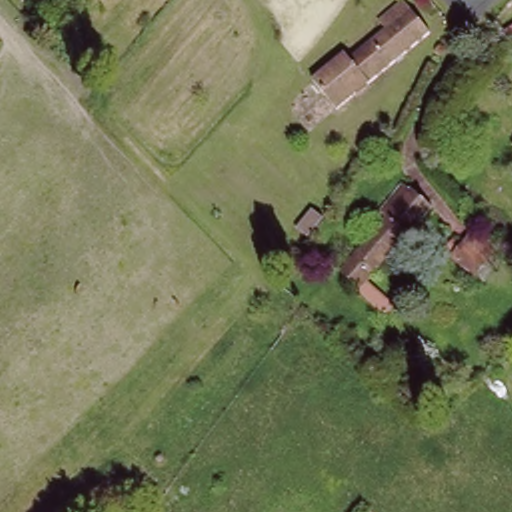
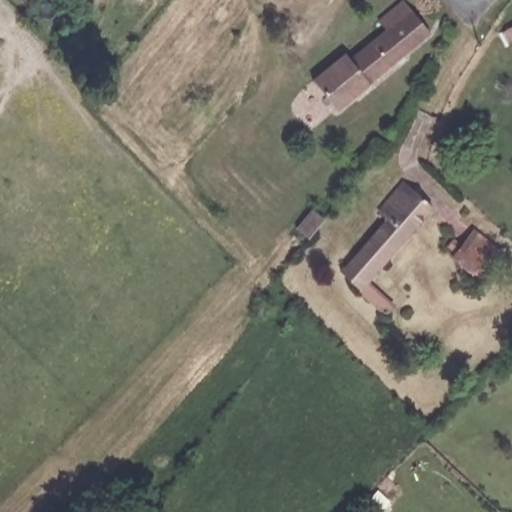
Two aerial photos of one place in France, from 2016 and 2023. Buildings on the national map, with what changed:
unchanged [(334,105),(311,76),(344,50),(348,56),(384,28),(376,17),(398,0),(403,0),(409,8),(411,7),(429,30),(334,105)]
unchanged [(361,290),(363,287),(344,270),(388,221),(379,213),(406,183),(411,187),(412,185),(435,206),(368,282),(394,306),(389,314),(361,290)]
unchanged [(492,269),(487,265),(478,276),(454,257),(458,252),(451,246),(457,239),(464,245),(466,242),(496,265),(492,269)]

